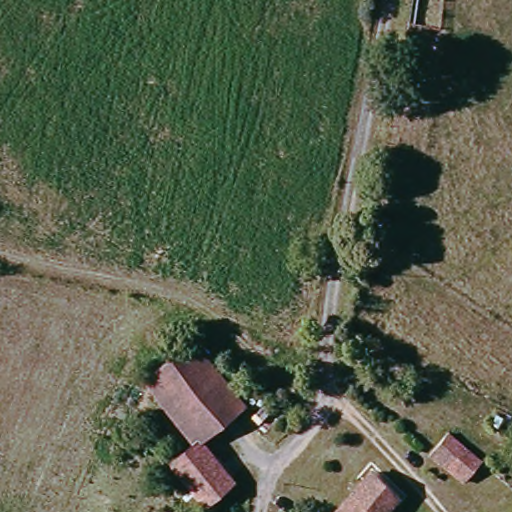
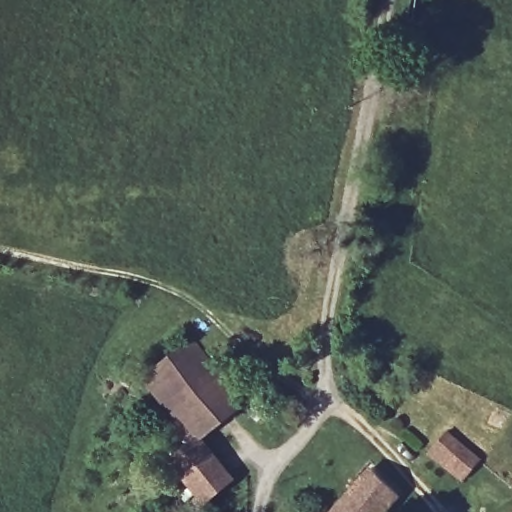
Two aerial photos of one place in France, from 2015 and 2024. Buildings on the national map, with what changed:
unchanged [(236,475),(208,497),(175,453),(202,433),(156,369),(200,336),(251,402),(207,436),(236,475)]
unchanged [(490,458),(472,481),(438,457),(457,432),(490,458)]
unchanged [(387,459),(413,483),(388,512),(341,512),(387,459)]

